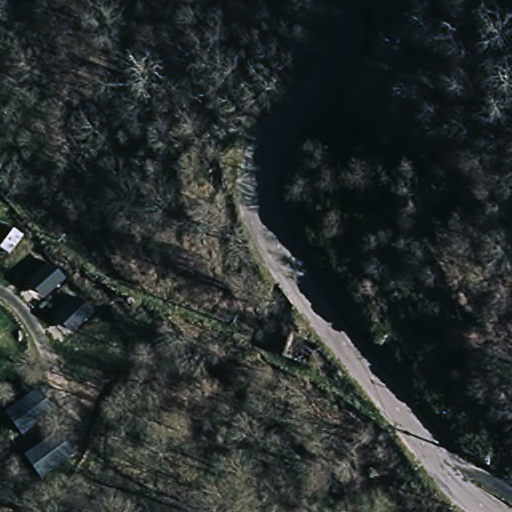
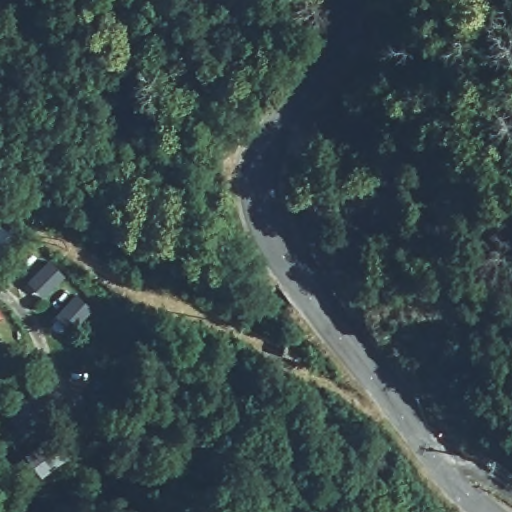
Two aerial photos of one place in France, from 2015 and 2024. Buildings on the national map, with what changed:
unchanged [(30,280),(50,260),(67,276),(43,298),(30,280)]
unchanged [(56,316),(77,296),(93,313),(73,332),(56,316)]
unchanged [(243,395),(220,379),(235,357),(257,372),(243,395)]
unchanged [(57,412),(25,438),(6,411),(38,389),(57,412)]
unchanged [(75,451),(42,477),(23,452),(58,429),(75,451)]

